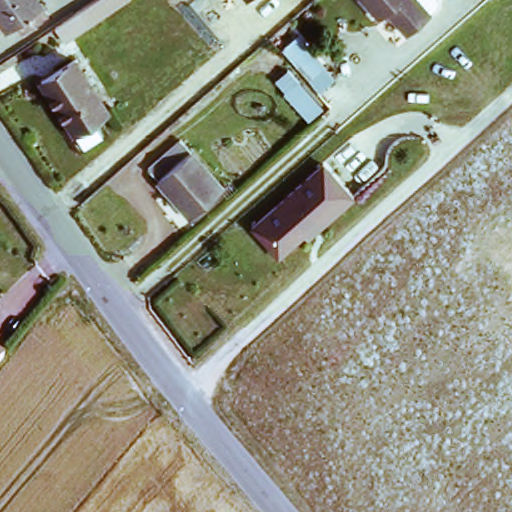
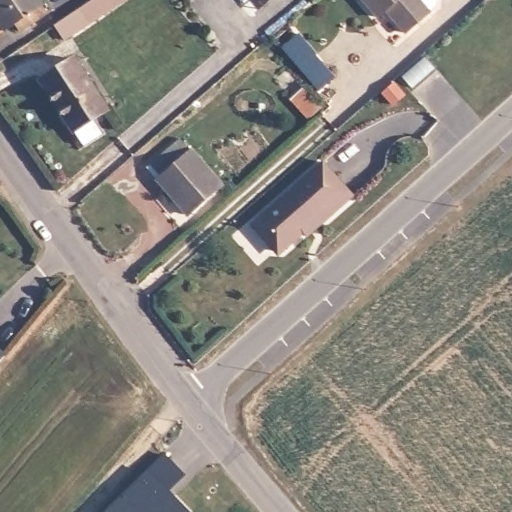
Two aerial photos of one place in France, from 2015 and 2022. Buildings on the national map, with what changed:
unchanged [(0,25),(0,0),(36,0),(44,11),(18,29),(12,21),(2,29),(0,25)]
unchanged [(53,21),(85,0),(113,0),(98,9),(62,34),(52,21),(53,21)]
unchanged [(368,0),(421,0),(431,11),(408,32),(388,9),(381,14),(368,0)]
unchanged [(293,61),(278,44),(301,25),(339,66),(320,83),(332,99),(309,118),(275,76),(293,61)]
unchanged [(82,144),(72,129),(40,78),(73,59),(104,109),(90,118),(100,134),(82,144)]
unchanged [(195,214),(152,166),(184,139),(227,187),(195,214)]
unchanged [(323,209),(283,245),(275,245),(252,219),(323,155),(353,189),(327,214),(323,209)]
unchanged [(7,354),(0,362),(0,348),(7,354)]
new [(165,454),(185,476),(168,491),(189,512),(105,512),(165,454)]

